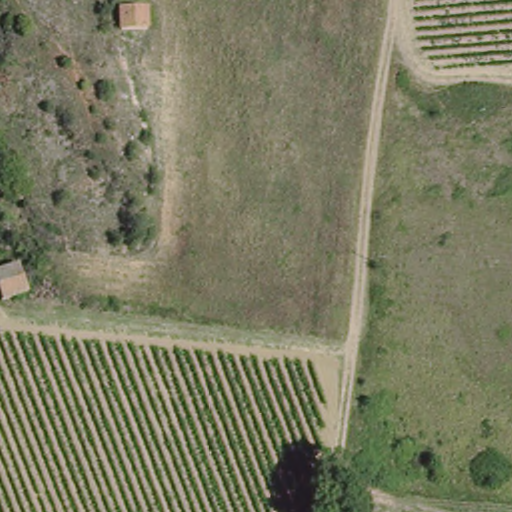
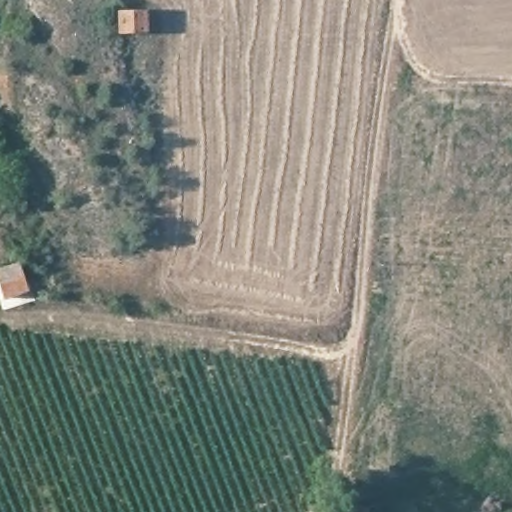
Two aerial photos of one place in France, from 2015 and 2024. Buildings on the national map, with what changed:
unchanged [(110,29),(110,6),(137,7),(137,30),(110,29)]
unchanged [(3,297),(0,292),(0,266),(14,260),(28,286),(3,297)]

